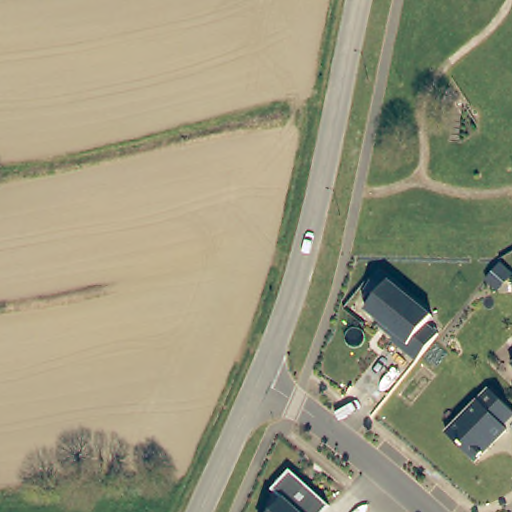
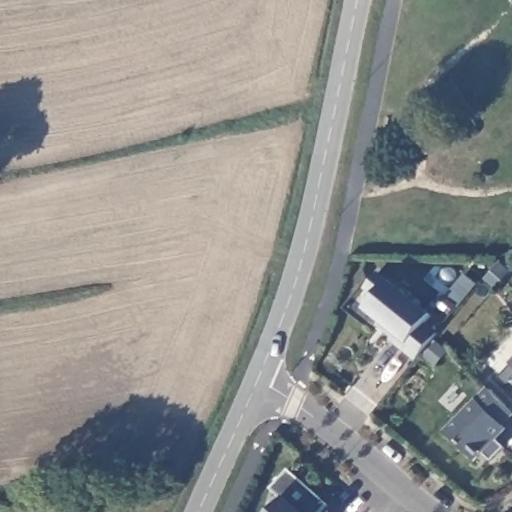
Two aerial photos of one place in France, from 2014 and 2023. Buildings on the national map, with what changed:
unchanged [(435,336),(417,358),(416,360),(390,340),(393,336),(379,324),(380,322),(365,310),(375,297),(365,289),(378,272),(388,280),(432,315),(425,323),(438,333),(435,336)]
unchanged [(512,361),(512,364),(510,363),(512,361)]
unchanged [(512,412),(512,415),(502,425),(506,429),(474,461),(445,433),(488,389),(498,398),(512,412)]
unchanged [(269,490),(287,470),(327,506),(322,512),(271,512),(280,501),(269,490)]

